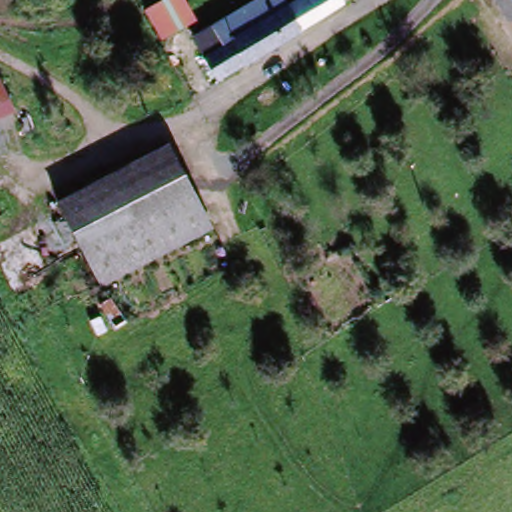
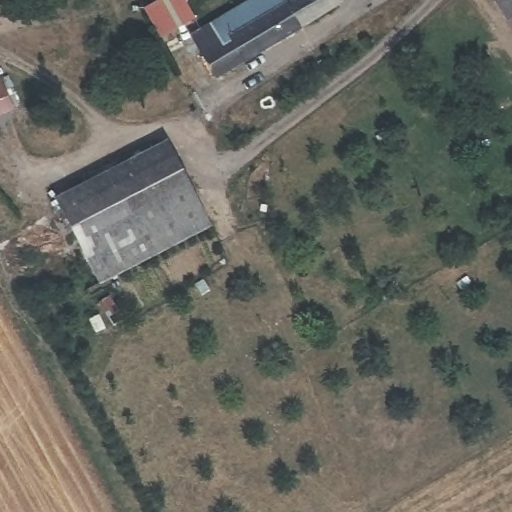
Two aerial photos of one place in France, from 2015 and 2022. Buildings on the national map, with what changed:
unchanged [(141,6),(153,0),(186,0),(196,19),(159,37),(141,6)]
unchanged [(208,25),(252,0),(278,0),(283,7),(295,0),(328,0),(333,8),(211,77),(199,55),(218,44),(208,25)]
unchanged [(512,7),(509,0),(512,0),(512,7)]
unchanged [(4,96),(0,98),(0,86),(4,96)]
unchanged [(55,195),(166,139),(211,225),(100,284),(55,195)]

